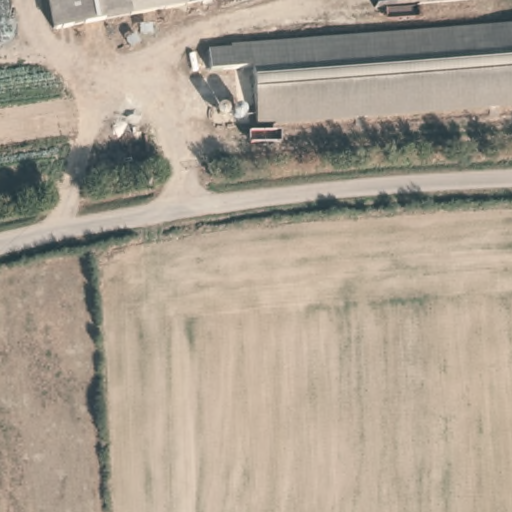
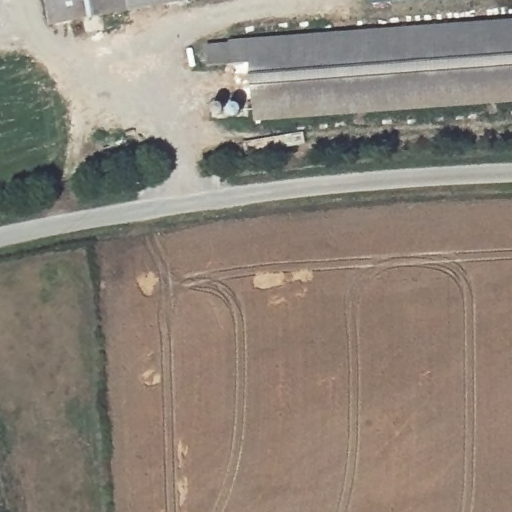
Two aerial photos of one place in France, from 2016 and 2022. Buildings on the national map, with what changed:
unchanged [(52,0),(131,0),(131,2),(56,16),(52,0)]
unchanged [(131,0),(139,0),(131,2),(131,0)]
unchanged [(371,0),(385,0),(372,1),(371,0)]
unchanged [(512,21),(512,97),(254,115),(249,59),(237,59),(236,41),(512,21)]

